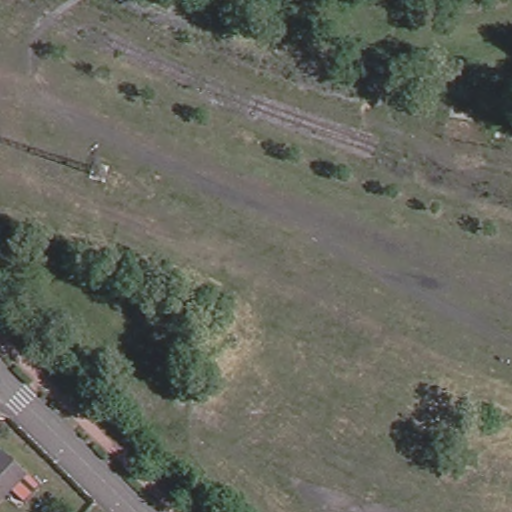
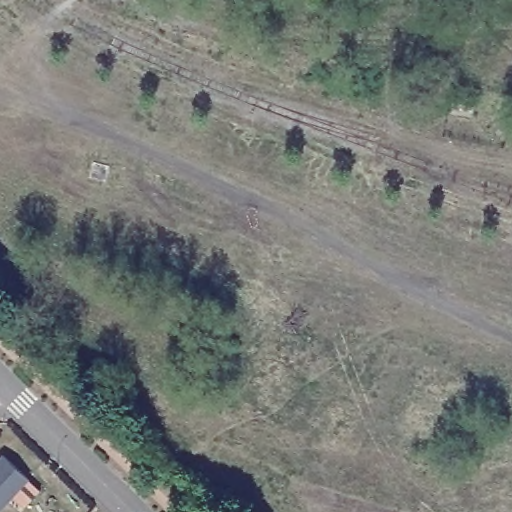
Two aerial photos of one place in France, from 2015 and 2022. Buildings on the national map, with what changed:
unchanged [(15,494),(0,510),(0,462),(7,454),(31,477),(43,490),(27,506),(15,494)]

